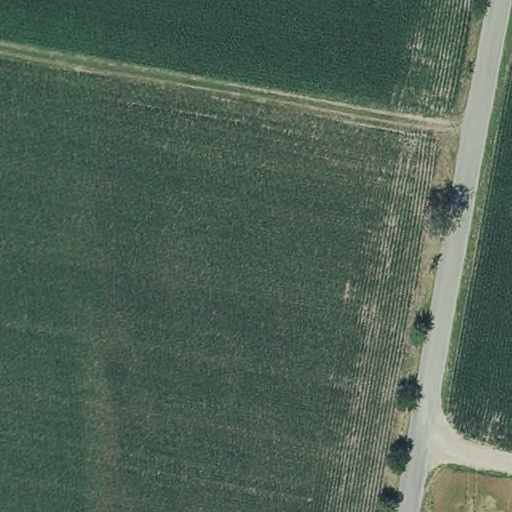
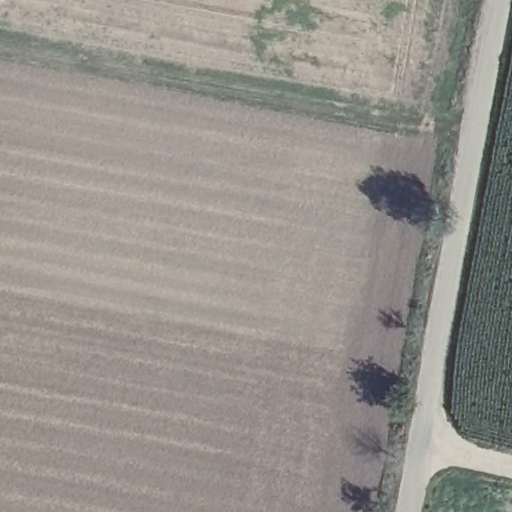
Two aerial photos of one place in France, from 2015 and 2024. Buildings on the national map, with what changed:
[]

